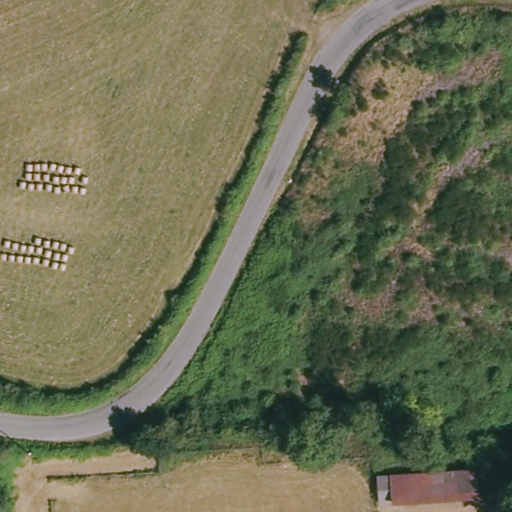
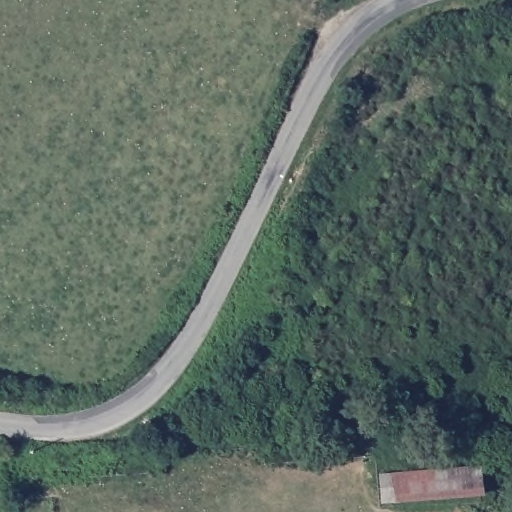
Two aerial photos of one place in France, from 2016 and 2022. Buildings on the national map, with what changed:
unchanged [(386,493),(384,477),(398,475),(483,468),(486,495),(433,499),(399,501),(387,502),(386,493)]

